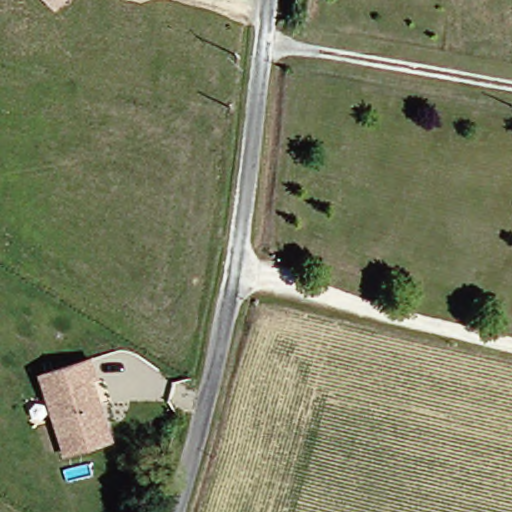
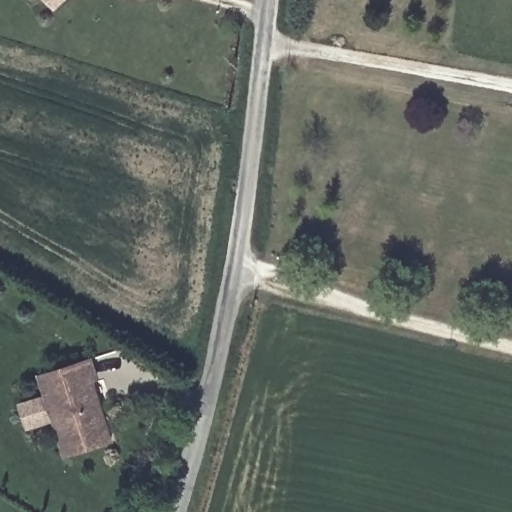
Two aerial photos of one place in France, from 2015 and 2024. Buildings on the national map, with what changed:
unchanged [(40,0),(64,0),(52,13),(40,0)]
unchanged [(94,360),(99,380),(94,381),(113,443),(67,457),(55,416),(35,424),(28,396),(48,391),(43,377),(94,360)]

